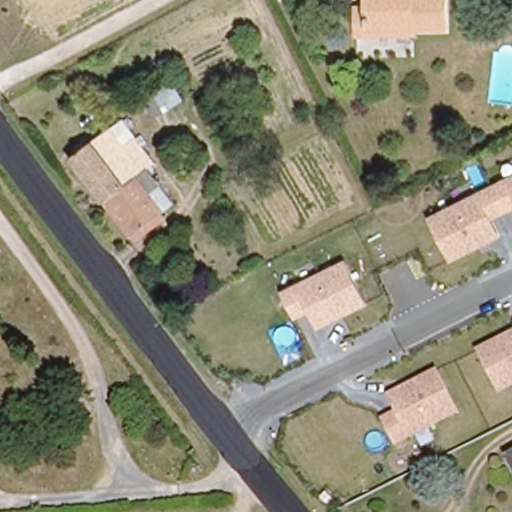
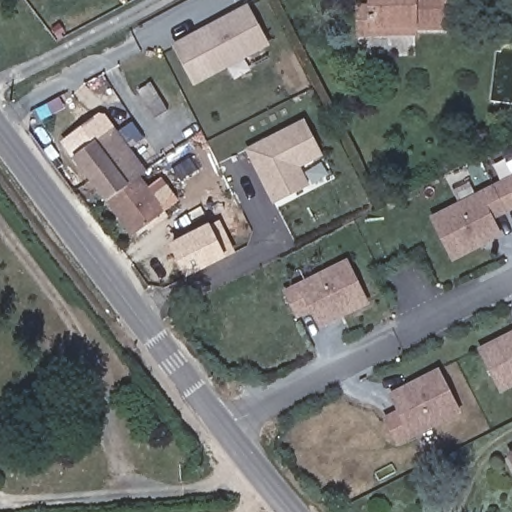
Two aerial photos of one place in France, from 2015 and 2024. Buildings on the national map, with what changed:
unchanged [(357,33),(357,5),(371,5),(370,0),(447,0),(448,26),(415,26),(415,34),(357,33)]
new [(247,9),(265,45),(192,81),(174,45),(247,9)]
demolished [(171,109),(152,80),(166,72),(184,100),(171,109)]
unchanged [(160,215),(131,236),(69,158),(104,131),(118,120),(131,136),(152,164),(145,169),(172,205),(160,215)]
new [(303,120),(320,154),(296,165),(306,186),(272,202),(246,149),(303,120)]
unchanged [(512,211),(496,219),(505,236),(452,262),(429,215),(512,174),(512,211)]
unchanged [(371,303),(320,330),(311,312),(297,319),(282,290),(347,258),(371,303)]
unchanged [(512,389),(501,395),(478,349),(512,331),(512,389)]
unchanged [(398,446),(382,417),(396,410),(387,393),(441,368),(462,412),(398,446)]

